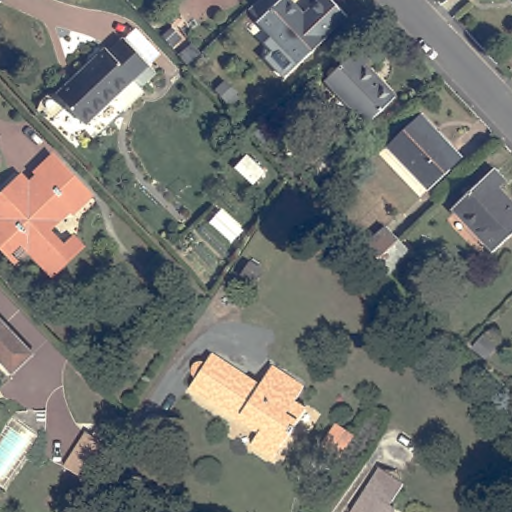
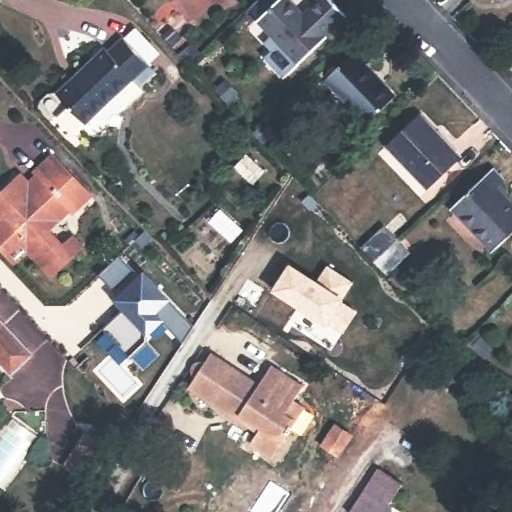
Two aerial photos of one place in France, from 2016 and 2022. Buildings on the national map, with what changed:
unchanged [(273,59),(281,53),(273,45),(280,38),(266,23),(255,12),(268,0),(295,0),(312,17),(329,0),(337,0),(356,19),(335,40),(332,38),(306,64),(291,78),(273,59)]
unchanged [(104,46),(109,50),(122,37),(156,71),(140,87),(132,79),(85,124),(56,93),(104,46)]
unchanged [(365,49),(378,62),(374,65),(403,97),(374,125),(333,81),(365,49)]
unchanged [(422,115),(463,159),(430,191),(388,147),(422,115)]
unchanged [(0,241),(0,225),(5,220),(0,214),(0,206),(24,183),(34,194),(66,164),(95,194),(53,233),(70,250),(77,258),(58,276),(26,242),(12,254),(0,241)]
unchanged [(512,181),(512,185),(506,191),(512,197),(512,243),(499,254),(458,211),(500,170),(512,181)]
unchanged [(388,272),(376,259),(364,247),(387,226),(399,238),(411,251),(388,272)]
new [(137,276),(144,269),(171,298),(169,300),(193,326),(184,342),(163,321),(148,336),(147,342),(130,358),(103,328),(124,309),(114,299),(118,296),(100,274),(120,255),(137,276)]
new [(318,280),(327,265),(354,283),(343,301),(358,312),(343,334),(328,323),(327,325),(271,291),(290,262),(318,280)]
unchanged [(36,353),(16,372),(0,356),(0,316),(36,353)]
unchanged [(201,379),(198,375),(197,370),(198,365),(203,361),(209,361),(212,362),(219,353),(266,385),(279,367),(310,389),(301,403),(312,411),(278,460),(256,445),(263,434),(195,387),(201,379)]
unchanged [(55,472),(77,439),(103,456),(80,490),(55,472)]
unchanged [(408,484),(393,504),(398,508),(399,512),(353,512),(384,467),(408,484)]

